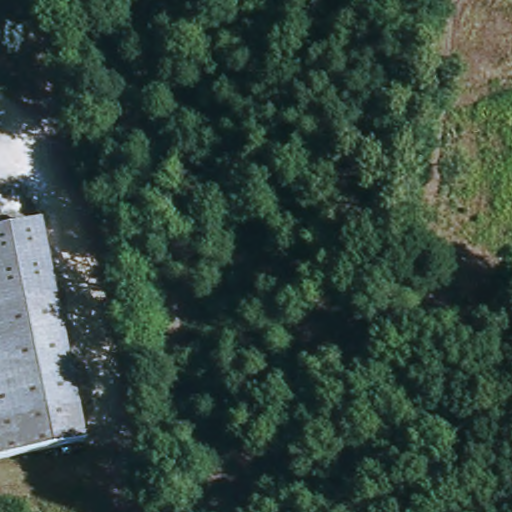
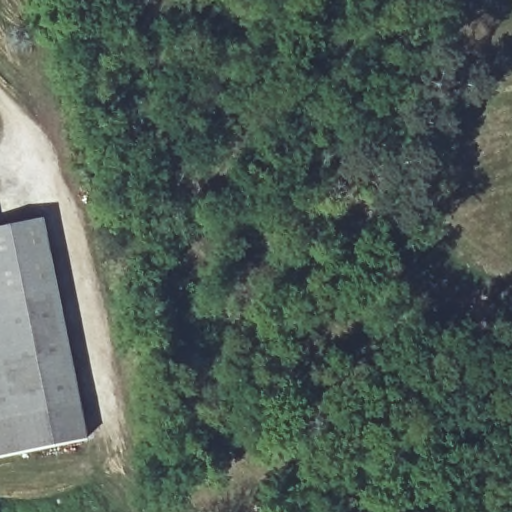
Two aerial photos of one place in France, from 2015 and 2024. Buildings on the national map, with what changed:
unchanged [(0,459),(0,209),(4,228),(46,220),(67,328),(88,442),(0,459)]

